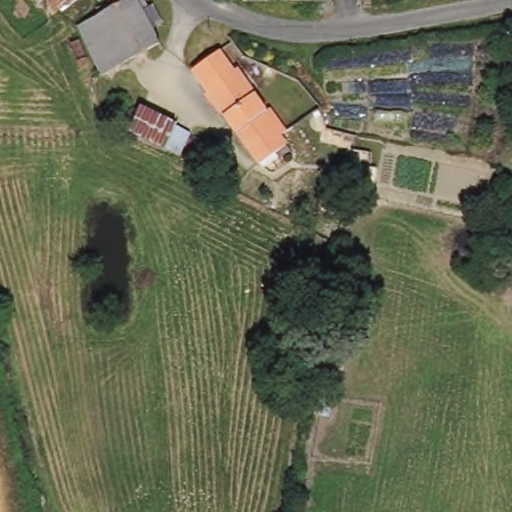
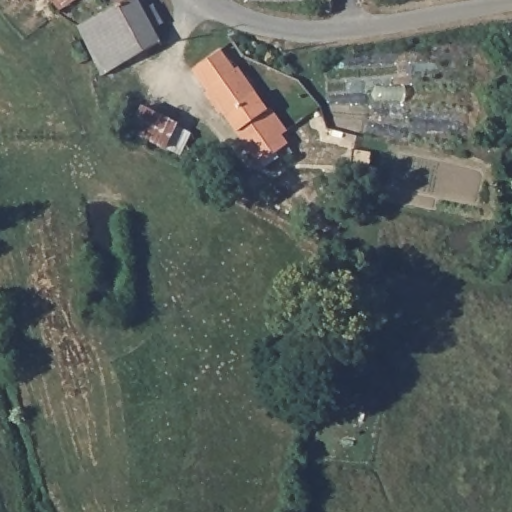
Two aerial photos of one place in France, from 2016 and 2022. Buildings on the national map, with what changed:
unchanged [(75,0),(55,13),(44,1),(46,0),(75,0)]
unchanged [(101,16),(99,10),(103,3),(108,0),(134,0),(133,1),(139,13),(150,9),(155,18),(162,29),(152,33),(159,49),(101,81),(74,31),(94,20),(101,16)]
unchanged [(97,0),(103,0),(99,3),(97,0)]
unchanged [(242,0),(268,0),(248,1),(242,0)]
unchanged [(311,13),(309,0),(328,0),(328,12),(311,13)]
unchanged [(221,109),(197,73),(194,69),(223,49),(237,70),(239,67),(253,87),(262,100),(269,110),(273,108),(288,130),(283,134),(295,152),(282,161),(277,153),(260,164),(225,115),(221,109)]
unchanged [(179,122),(166,149),(131,133),(144,107),(179,122)]

